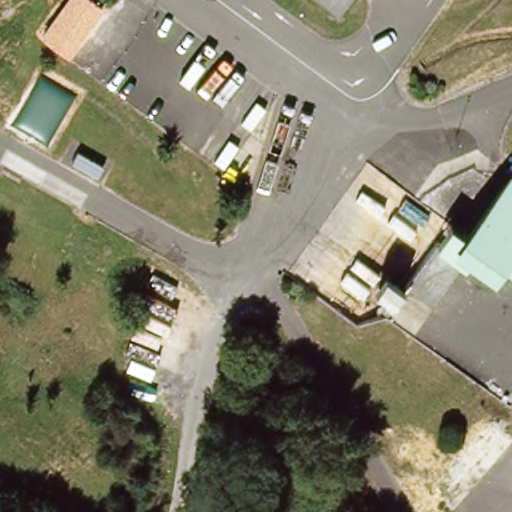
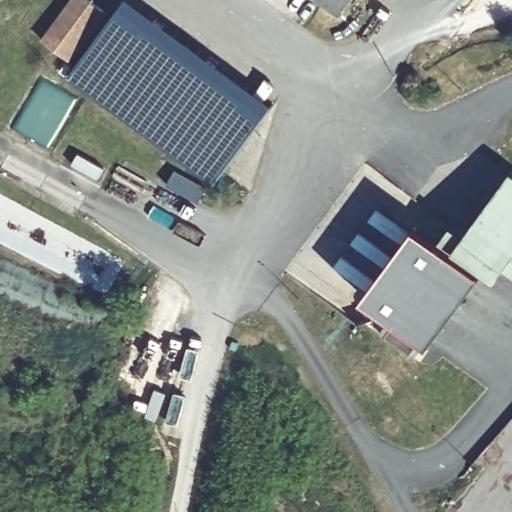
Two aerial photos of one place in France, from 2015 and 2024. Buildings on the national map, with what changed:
unchanged [(69,62),(40,41),(70,0),(87,0),(104,13),(69,62)]
new [(124,0),(130,0),(272,103),(213,183),(67,76),(124,0)]
unchanged [(337,13),(319,0),(348,0),(337,13)]
unchanged [(466,230),(512,171),(512,268),(505,263),(496,277),(471,259),(466,266),(436,244),(452,221),(466,230)]
new [(362,298),(414,227),(436,244),(466,266),(478,275),(428,346),(420,340),(410,353),(385,334),(395,321),(362,298)]
demolished [(387,296),(374,287),(385,272),(407,286),(396,302),(387,296)]

